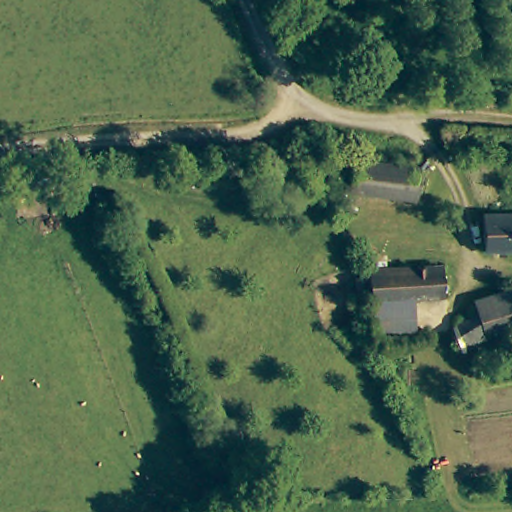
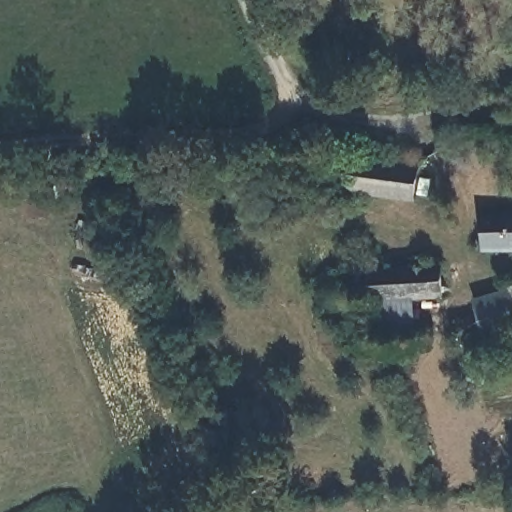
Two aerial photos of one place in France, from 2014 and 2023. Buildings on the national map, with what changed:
unchanged [(418,168),(413,200),(350,192),(354,159),(418,168)]
unchanged [(512,248),(484,248),(483,211),(512,210),(512,248)]
unchanged [(448,295),(414,297),(394,298),(381,299),(373,299),(371,296),(370,268),(447,263),(448,295)]
unchanged [(512,315),(512,319),(461,343),(459,338),(451,317),(456,314),(481,304),(508,295),(506,280),(512,280),(512,312),(511,312),(512,315)]
unchanged [(381,299),(394,298),(414,297),(416,332),(398,333),(375,334),(373,299),(381,299)]

